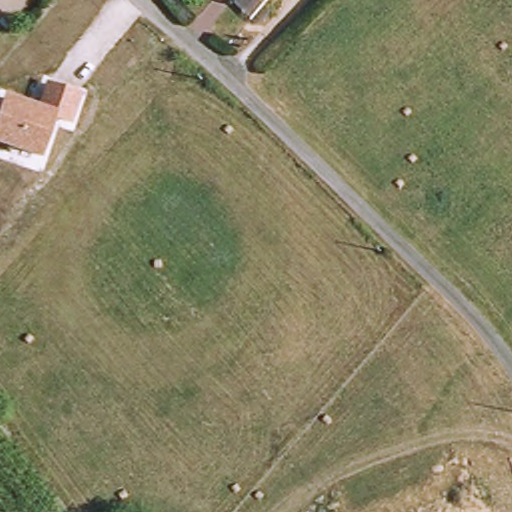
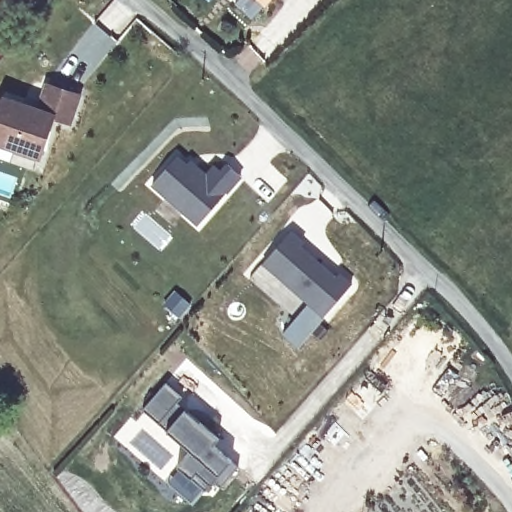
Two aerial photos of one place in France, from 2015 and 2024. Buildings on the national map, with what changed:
unchanged [(263,0),(277,0),(270,7),(263,0)]
unchanged [(85,94),(74,126),(55,124),(42,162),(0,148),(0,106),(4,94),(37,106),(46,80),(85,94)]
new [(151,186),(180,155),(189,162),(192,159),(207,173),(214,165),(219,170),(228,161),(243,176),(197,226),(151,186)]
new [(263,264),(293,230),(305,240),(303,245),(337,276),(340,273),(353,284),(323,317),(263,264)]
new [(221,486),(214,480),(209,484),(205,491),(190,478),(177,467),(192,452),(167,430),(143,410),(166,383),(183,396),(178,403),(184,409),(219,439),(214,445),(230,460),(238,467),(221,486)]

